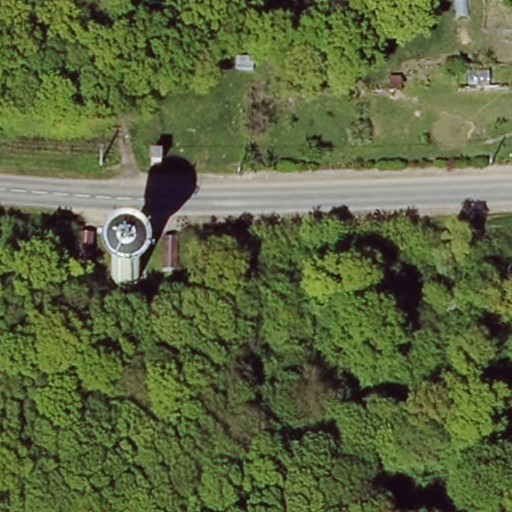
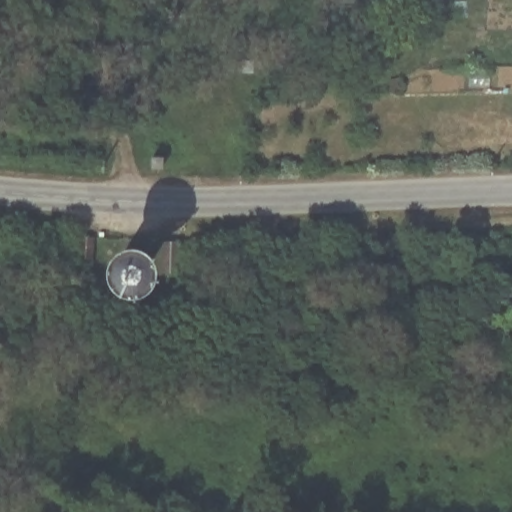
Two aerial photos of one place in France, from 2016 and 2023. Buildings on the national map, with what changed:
unchanged [(380,59),(392,59),(391,74),(380,74),(380,59)]

